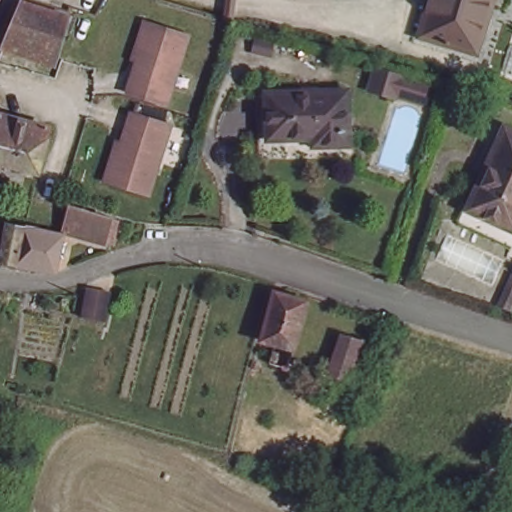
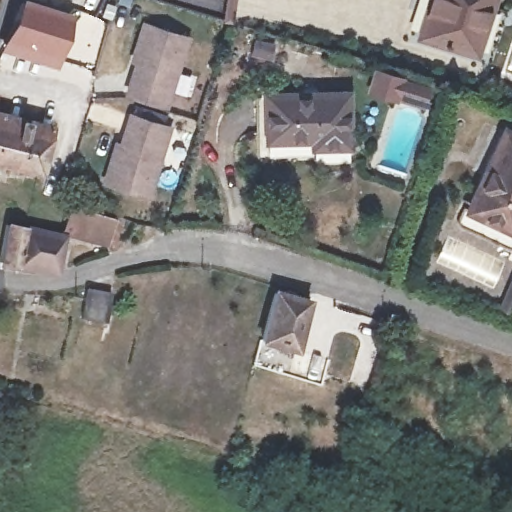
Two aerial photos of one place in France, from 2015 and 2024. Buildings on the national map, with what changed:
unchanged [(430,0),(495,0),(492,13),(486,11),(473,55),(454,50),(452,56),(417,45),(430,0)]
unchanged [(61,69),(53,66),(17,54),(5,50),(22,10),(69,22),(56,57),(63,60),(61,69)]
unchanged [(126,100),(137,64),(132,62),(141,30),(185,44),(165,111),(126,100)]
unchanged [(424,97),(399,90),(371,83),(377,64),(404,71),(430,79),(424,97)]
unchanged [(268,97),(314,96),(314,93),(350,92),(351,145),(316,146),(316,139),(269,140),(268,97)]
unchanged [(108,177),(105,177),(115,145),(118,146),(120,146),(130,111),(168,122),(148,190),(108,177)]
unchanged [(30,118),(26,129),(47,135),(38,174),(0,164),(0,119),(16,125),(20,115),(30,118)]
unchanged [(457,221),(454,219),(453,216),(453,211),(457,200),(463,202),(485,155),(482,154),(496,119),(512,126),(512,245),(457,221)]
unchanged [(110,247),(103,245),(83,239),(64,232),(70,207),(88,214),(110,221),(117,224),(110,247)]
unchanged [(18,265),(0,262),(0,257),(6,225),(25,230),(63,239),(55,273),(18,265)]
unchanged [(511,271),(512,272),(512,297),(509,305),(500,301),(511,271)]
unchanged [(106,285),(100,315),(76,310),(82,280),(106,285)]
unchanged [(273,350),(264,347),(265,343),(261,342),(275,293),(309,305),(288,372),(268,365),(273,350)]
unchanged [(368,345),(350,384),(331,376),(346,337),(368,345)]
unchanged [(258,376),(248,373),(250,365),(261,369),(258,376)]

